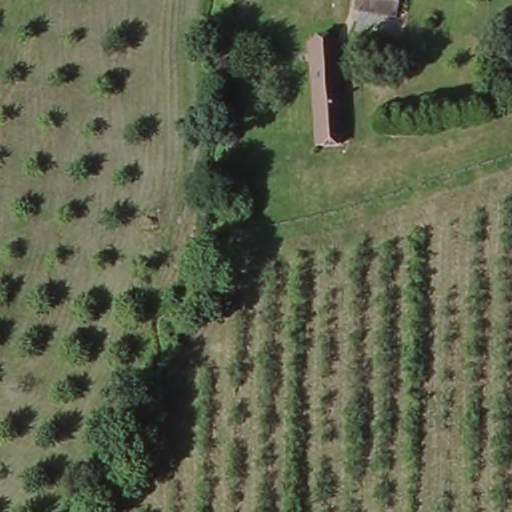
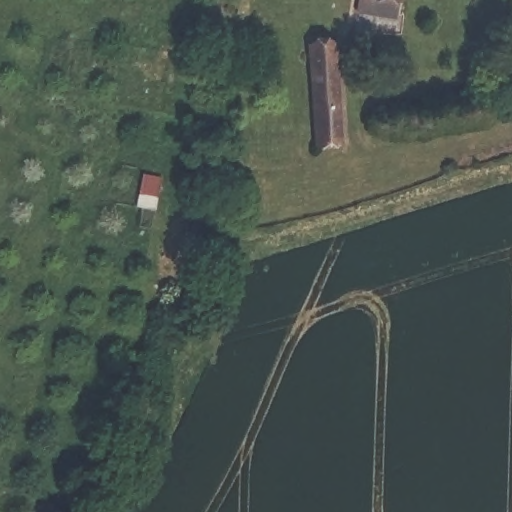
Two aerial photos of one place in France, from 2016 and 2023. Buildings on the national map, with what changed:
unchanged [(358,0),(364,0),(370,0),(403,0),(401,20),(356,14),(358,0)]
unchanged [(335,20),(344,152),(313,156),(301,17),(335,20)]

